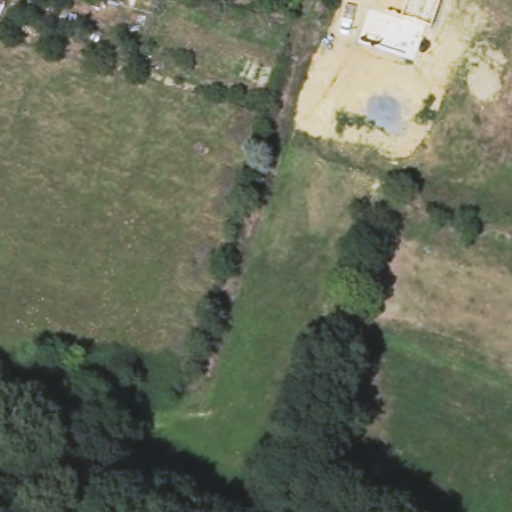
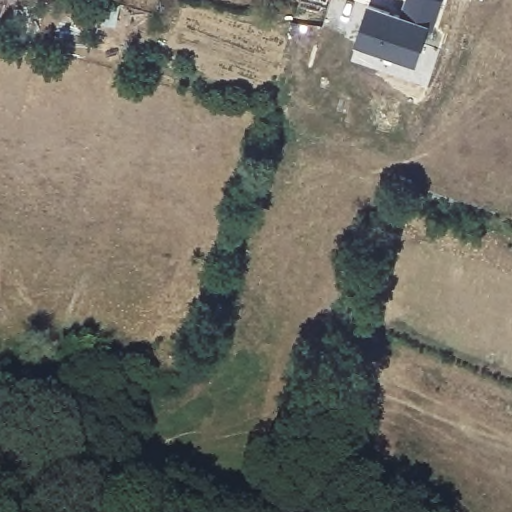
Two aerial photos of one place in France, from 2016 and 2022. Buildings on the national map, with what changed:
new [(428,28),(416,64),(356,44),(370,4),(400,14),(405,0),(443,0),(433,30),(428,28)]

